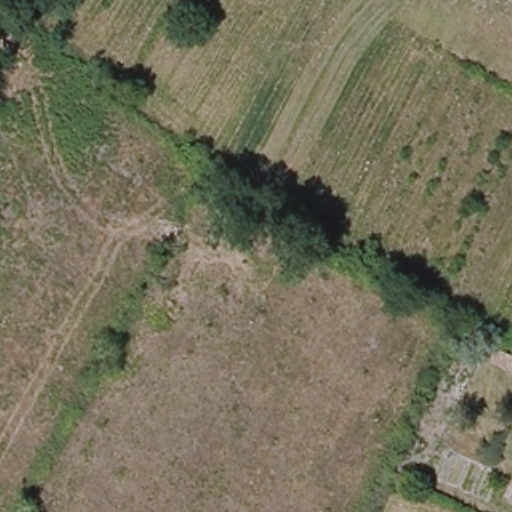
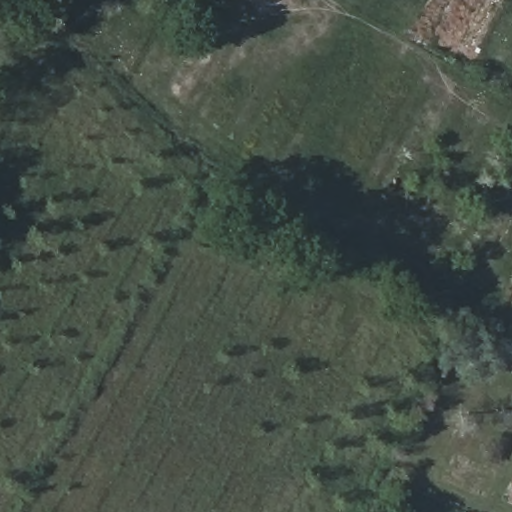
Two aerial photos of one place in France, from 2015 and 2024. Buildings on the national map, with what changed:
unchanged [(512,494),(512,500),(510,499),(512,494)]

